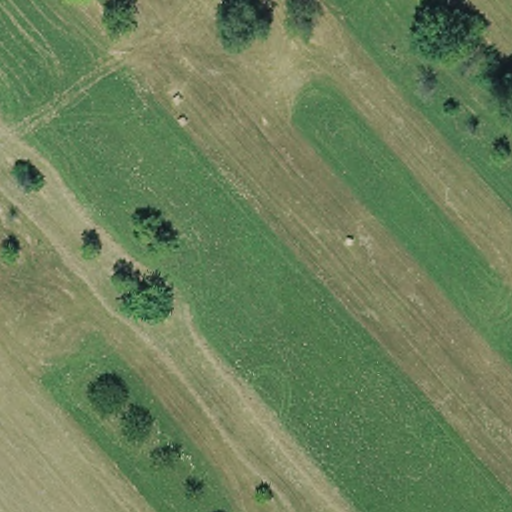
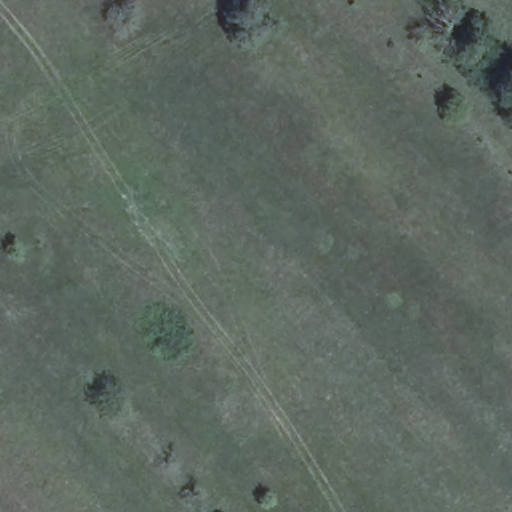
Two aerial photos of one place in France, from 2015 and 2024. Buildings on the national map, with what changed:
unchanged [(384,0),(406,0),(394,11),(384,0)]

